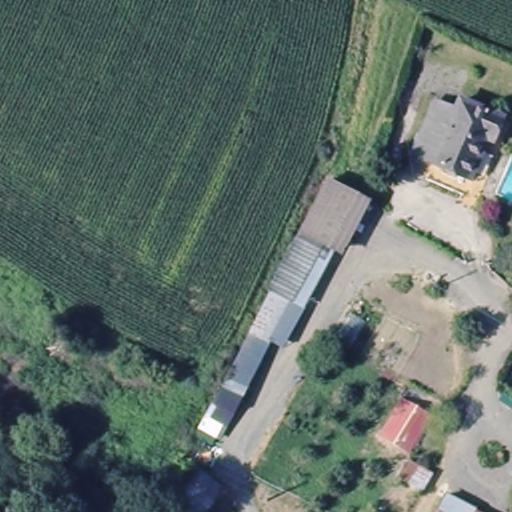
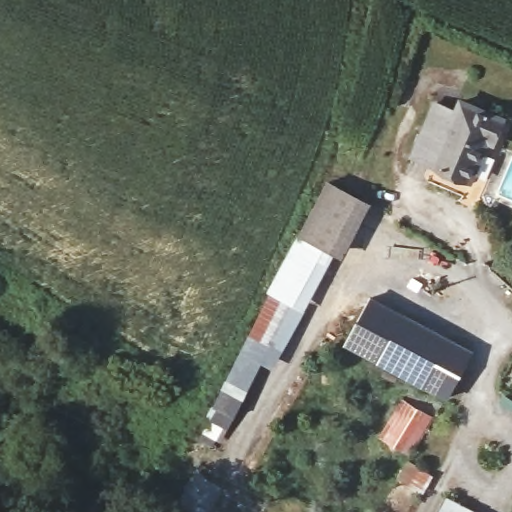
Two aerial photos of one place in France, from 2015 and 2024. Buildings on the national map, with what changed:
unchanged [(412,153),(434,102),(454,111),(459,100),(502,119),(492,143),(486,141),(470,179),(433,162),(412,153)]
unchanged [(336,256),(300,239),(329,182),(372,204),(343,260),(336,256)]
unchanged [(212,401),(300,239),(336,256),(284,350),(270,349),(235,415),(215,445),(193,435),(212,401)]
new [(369,295),(448,337),(423,383),(344,340),(369,295)]
new [(448,337),(470,350),(444,395),(423,383),(448,337)]
new [(409,456),(378,438),(402,398),(432,417),(409,456)]
unchanged [(409,461),(430,473),(420,491),(399,479),(409,461)]
unchanged [(224,485),(208,512),(172,512),(196,470),(224,485)]
unchanged [(445,510),(450,512),(444,512),(445,510)]

